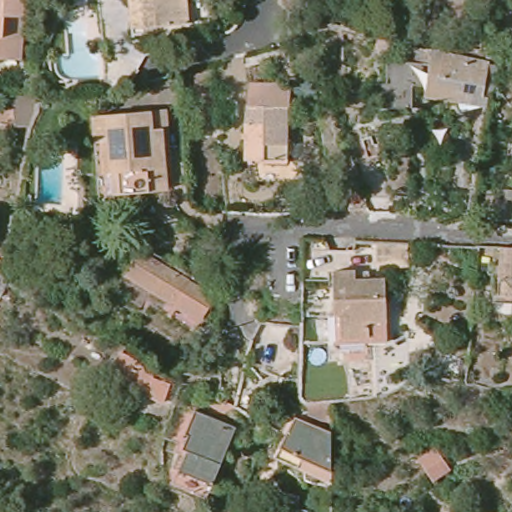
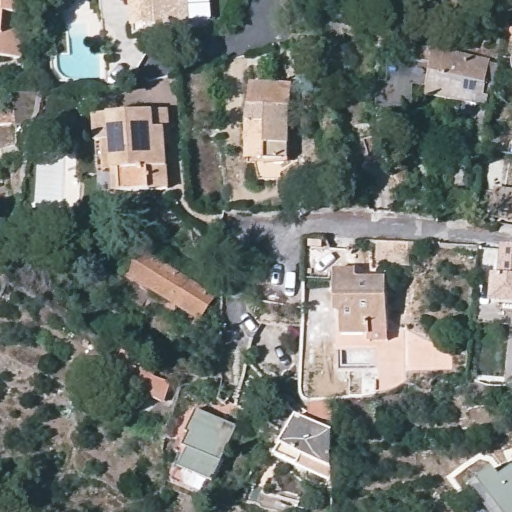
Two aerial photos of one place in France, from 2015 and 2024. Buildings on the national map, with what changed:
unchanged [(30,53),(28,58),(3,56),(1,66),(0,66),(0,0),(34,0),(30,53)]
unchanged [(194,21),(165,24),(166,31),(139,33),(135,0),(192,0),(194,21)]
unchanged [(326,38),(333,36),(334,40),(338,40),(339,49),(328,49),(326,38)]
unchanged [(364,52),(345,49),(346,37),(365,41),(364,52)]
unchanged [(506,65),(503,59),(512,44),(512,69),(506,65)]
unchanged [(423,96),(425,86),(431,54),(489,64),(486,86),(485,87),(482,89),(479,89),(478,95),(463,93),(461,103),(423,96)]
unchanged [(242,105),(245,68),(286,70),(285,91),(281,145),(289,146),(288,167),(254,165),(238,164),(242,105)]
unchanged [(43,93),(36,125),(16,124),(14,93),(43,93)]
unchanged [(161,189),(113,194),(103,116),(161,109),(169,108),(171,125),(176,174),(178,187),(161,189)]
unchanged [(349,210),(348,197),(343,181),(334,147),(336,147),(349,151),(361,197),(364,211),(349,210)]
unchanged [(9,232),(9,234),(8,251),(0,251),(0,222),(9,221),(9,232)]
unchanged [(378,238),(409,239),(408,265),(378,265),(378,238)]
unchanged [(501,261),(502,246),(512,246),(512,300),(499,299),(501,276),(501,261)]
unchanged [(177,304),(127,271),(140,250),(214,297),(193,330),(170,315),(177,304)]
unchanged [(386,296),(387,302),(390,348),(334,349),(333,275),(345,275),(346,279),(368,279),(369,285),(384,284),(386,296)]
unchanged [(111,382),(123,361),(150,375),(158,379),(156,385),(171,393),(165,411),(111,382)]
unchanged [(309,416),(309,406),(333,400),(333,419),(309,416)]
unchanged [(219,415),(222,416),(236,422),(224,458),(209,491),(178,479),(190,447),(186,446),(190,431),(188,429),(195,409),(219,415)]
unchanged [(282,442),(296,413),(331,436),(332,458),(332,480),(299,464),(304,454),(282,442)]
new [(495,467),(502,475),(512,468),(512,512),(489,512),(471,487),(478,481),(495,467)]

